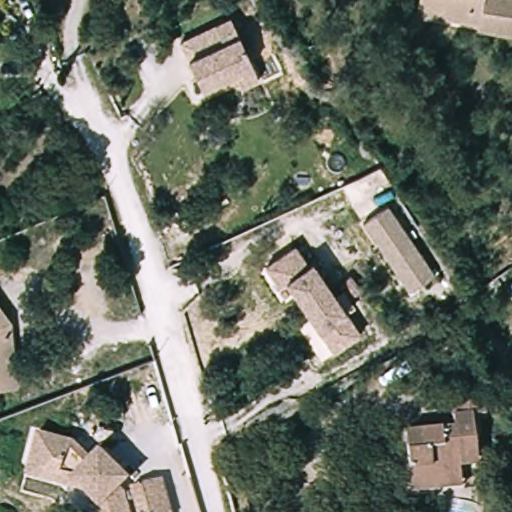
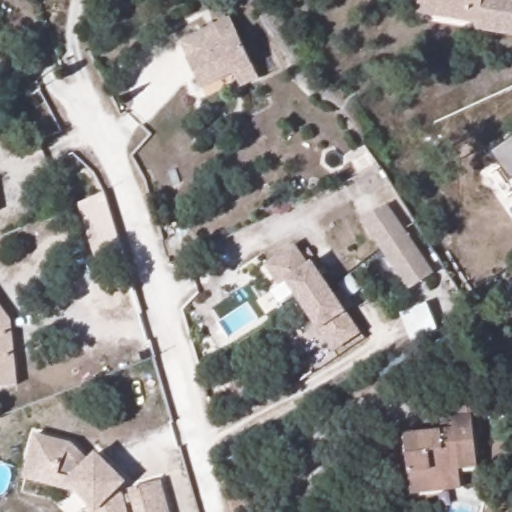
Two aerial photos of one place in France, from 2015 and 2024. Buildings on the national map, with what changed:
unchanged [(479,28),(480,21),(418,11),(420,0),(512,0),(512,34),(479,28)]
unchanged [(179,37),(229,13),(260,78),(242,87),(235,71),(204,86),(179,37)]
new [(491,153),(512,138),(512,180),(510,181),(491,153)]
unchanged [(408,292),(359,222),(383,205),(432,275),(408,292)]
unchanged [(266,261),(293,242),(358,335),(330,354),(266,261)]
unchanged [(22,385),(0,388),(0,301),(15,320),(22,385)]
unchanged [(442,493),(416,497),(408,436),(458,430),(454,402),(487,398),(490,421),(477,422),(483,469),(464,471),(466,490),(442,493)]
unchanged [(78,441),(94,457),(102,449),(133,480),(125,488),(129,492),(134,512),(99,512),(101,510),(73,482),(68,487),(28,477),(40,431),(78,441)]
unchanged [(167,478),(176,512),(141,512),(134,487),(167,478)]

